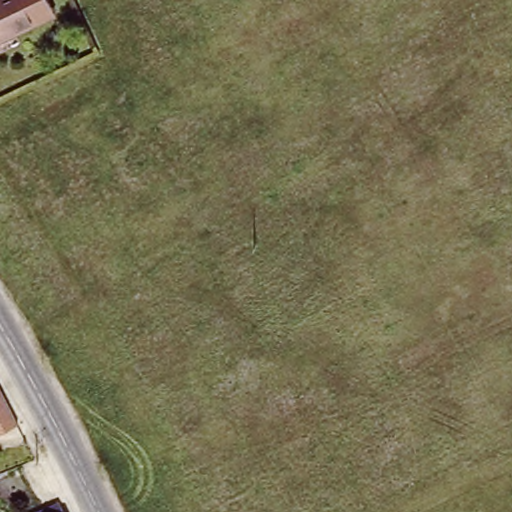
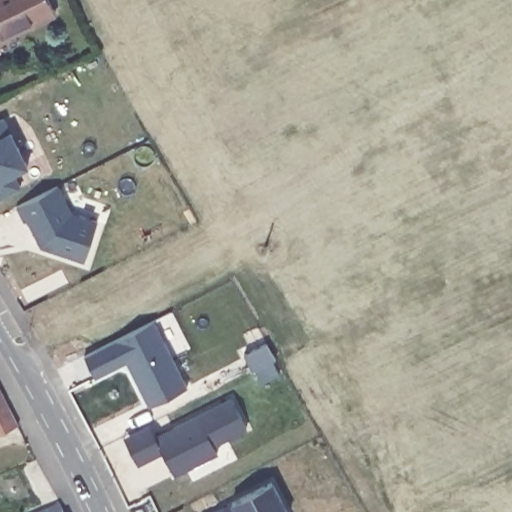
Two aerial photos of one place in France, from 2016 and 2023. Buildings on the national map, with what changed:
unchanged [(48,0),(54,11),(0,41),(0,0),(48,0)]
new [(17,173),(23,188),(0,199),(0,118),(3,116),(12,129),(10,130),(28,166),(17,173)]
new [(41,247),(28,219),(25,222),(17,206),(58,184),(72,213),(98,219),(84,262),(41,247)]
new [(150,406),(127,362),(96,378),(85,356),(155,320),(190,387),(150,406)]
unchanged [(0,377),(11,396),(22,418),(0,429),(0,376),(0,377)]
new [(216,447),(220,453),(175,477),(162,454),(140,464),(123,438),(148,425),(155,437),(231,397),(248,429),(216,447)]
new [(230,503),(273,481),(289,512),(212,512),(230,503)]
unchanged [(63,504),(65,509),(67,512),(44,512),(63,504)]

